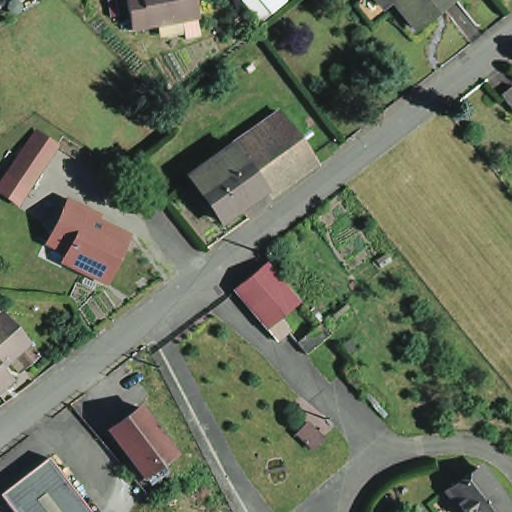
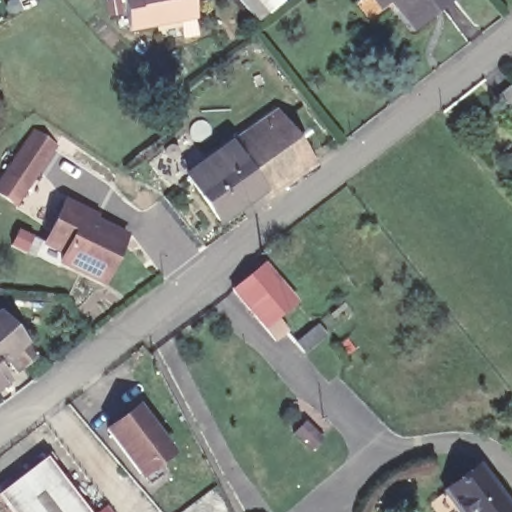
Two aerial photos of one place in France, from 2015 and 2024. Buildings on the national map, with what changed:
unchanged [(117,0),(118,0),(120,16),(105,18),(103,2),(117,0)]
unchanged [(122,0),(190,0),(194,24),(128,35),(122,0)]
unchanged [(284,3),(271,14),(270,14),(259,24),(239,1),(240,0),(281,0),(284,3)]
unchanged [(350,6),(358,0),(451,0),(412,31),(393,8),(366,28),(350,6)]
unchanged [(508,85),(512,90),(512,114),(496,94),(508,85)]
unchanged [(276,111),(309,156),(263,189),(230,144),(276,111)]
unchanged [(3,171),(29,128),(56,143),(28,189),(3,171)]
unchanged [(263,189),(218,221),(186,176),(209,159),(230,144),(263,189)]
unchanged [(59,263),(61,248),(43,239),(63,196),(89,206),(86,213),(126,231),(103,281),(59,263)]
unchanged [(259,314),(233,282),(264,258),(297,298),(276,316),(284,325),(274,334),(268,328),(269,327),(266,323),(259,314)]
unchanged [(8,335),(34,365),(21,377),(16,381),(5,369),(0,374),(0,327),(8,335)]
unchanged [(8,388),(0,396),(0,378),(8,388)]
unchanged [(135,400),(173,451),(141,474),(102,428),(135,400)]
unchanged [(306,419),(322,440),(308,449),(291,429),(306,419)]
unchanged [(44,458),(86,512),(7,512),(0,503),(0,493),(44,458)]
unchanged [(482,473),(510,512),(460,512),(449,497),(482,473)]

